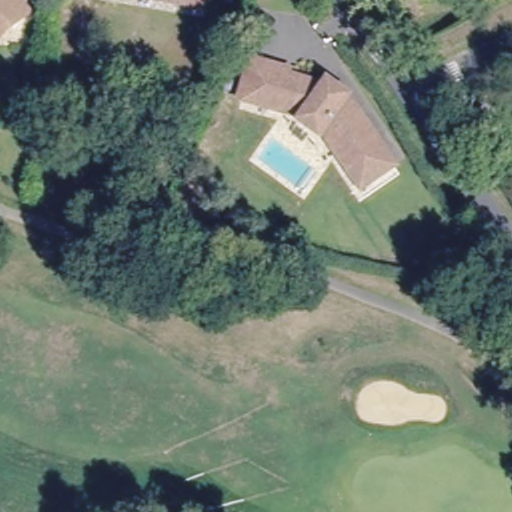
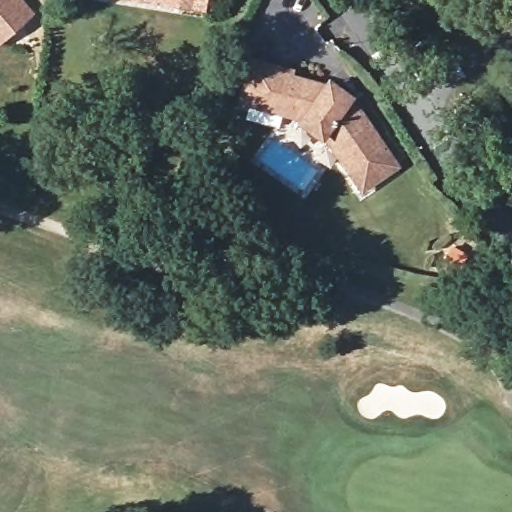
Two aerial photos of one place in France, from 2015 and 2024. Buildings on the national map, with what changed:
unchanged [(29,11),(7,30),(0,35),(0,0),(20,0),(29,11)]
unchanged [(163,0),(193,0),(192,5),(163,0)]
unchanged [(287,64),(286,70),(321,79),(332,86),(336,83),(345,88),(379,138),(392,156),(360,178),(321,121),(301,109),(241,93),(251,55),(287,64)]

